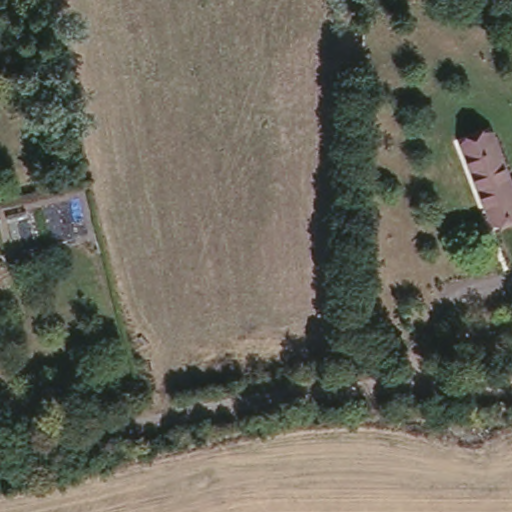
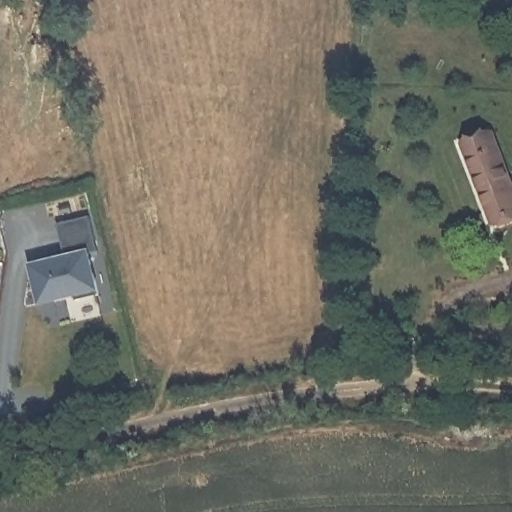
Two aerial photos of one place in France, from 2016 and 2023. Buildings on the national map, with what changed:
unchanged [(507,182),(512,181),(512,208),(487,217),(456,140),(487,127),(507,182)]
new [(63,262),(55,228),(88,220),(96,255),(86,257),(96,299),(73,305),(36,311),(27,270),(52,265),(63,262)]

